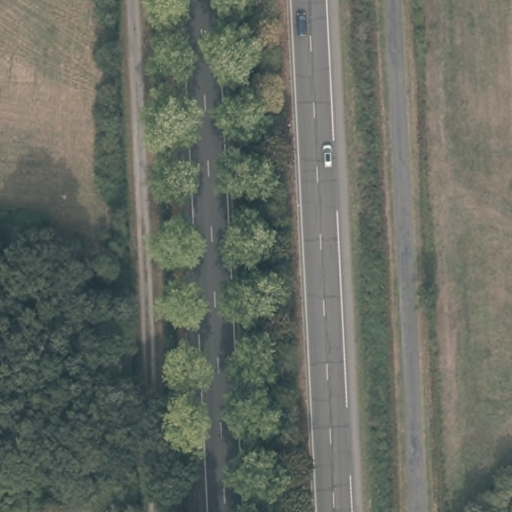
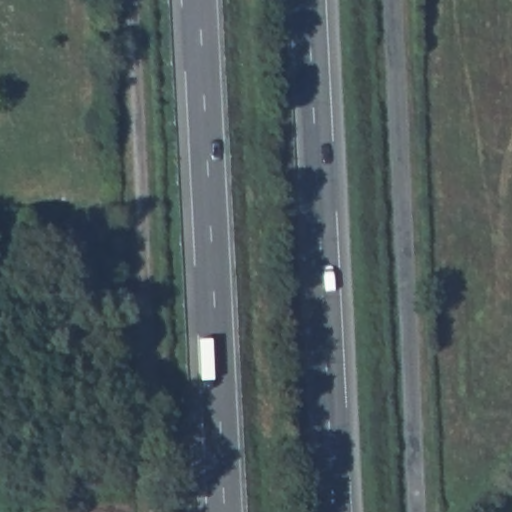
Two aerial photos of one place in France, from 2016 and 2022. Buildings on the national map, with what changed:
unchanged [(29,207),(28,223),(0,221),(0,206),(29,207)]

